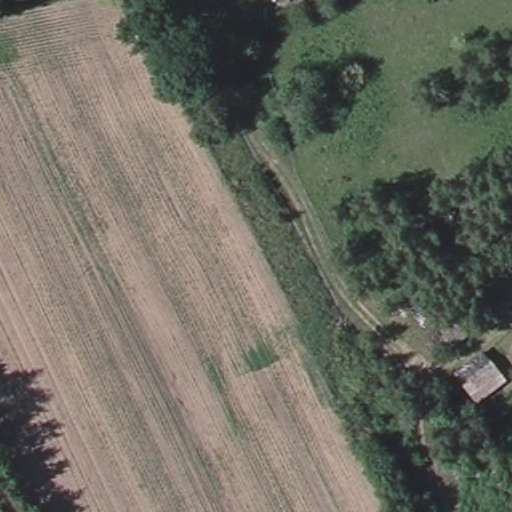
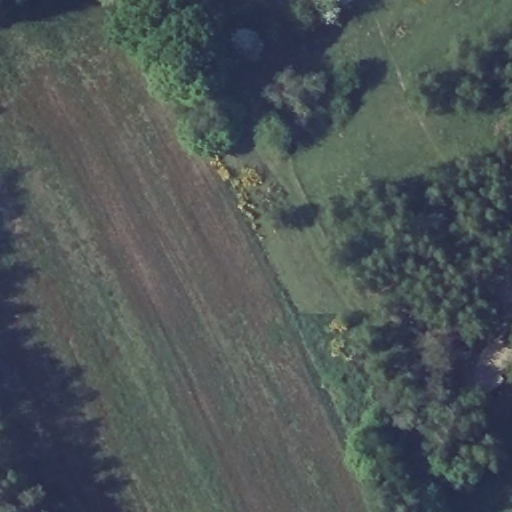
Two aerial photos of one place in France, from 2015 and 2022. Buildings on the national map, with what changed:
unchanged [(442,209),(457,233),(425,255),(410,234),(442,209)]
unchanged [(483,350),(507,382),(475,405),(452,375),(483,350)]

